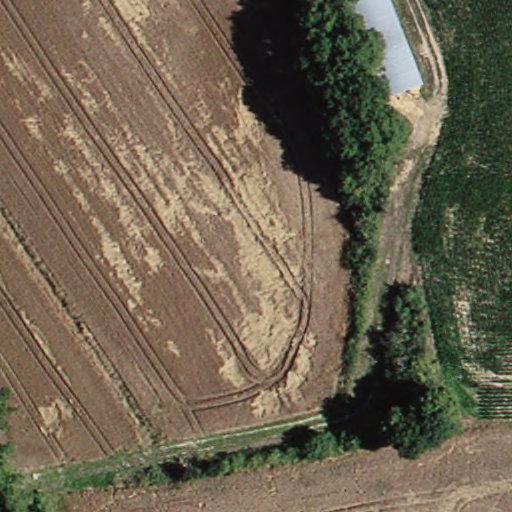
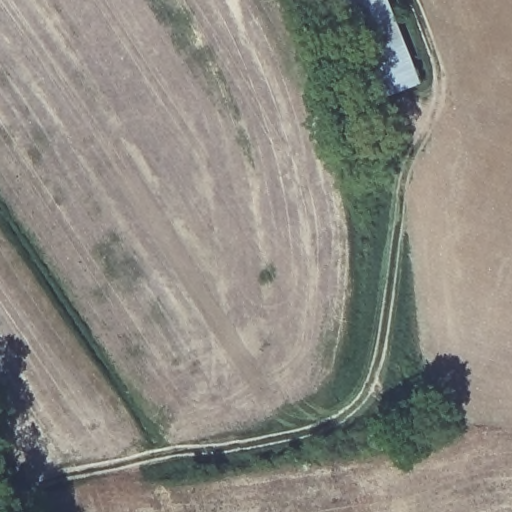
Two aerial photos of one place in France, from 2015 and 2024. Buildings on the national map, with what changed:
unchanged [(345,0),(391,0),(424,85),(383,100),(345,0)]

